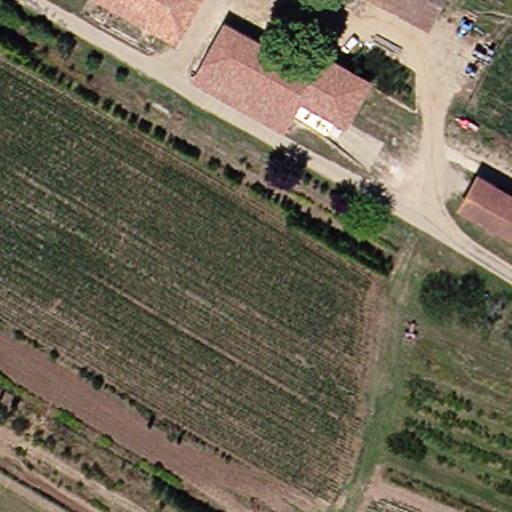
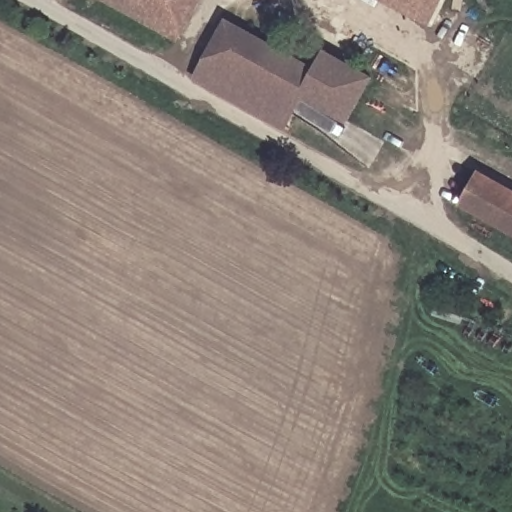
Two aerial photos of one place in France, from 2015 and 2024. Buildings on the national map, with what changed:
unchanged [(164,32),(112,6),(101,0),(198,0),(178,39),(164,32)]
unchanged [(383,0),(444,0),(432,24),(419,17),(383,0)]
unchanged [(314,70),(324,51),(371,77),(346,122),(303,98),(285,130),(193,79),(225,21),(314,70)]
unchanged [(476,173),(512,193),(512,238),(458,208),(476,173)]

